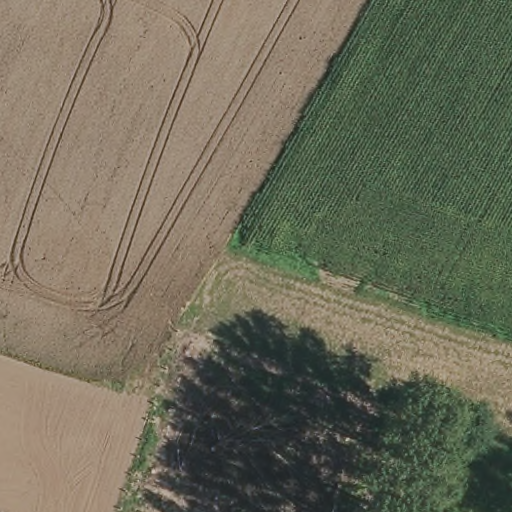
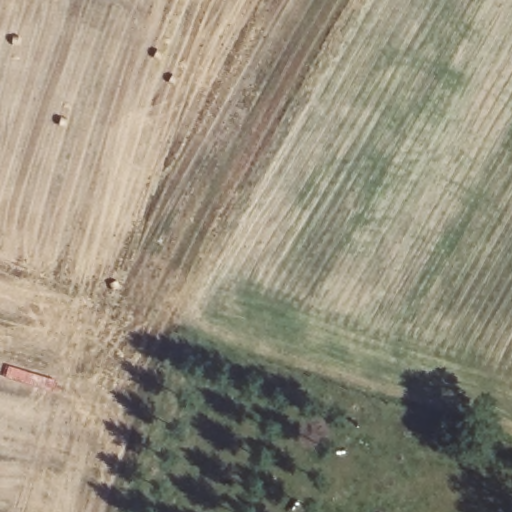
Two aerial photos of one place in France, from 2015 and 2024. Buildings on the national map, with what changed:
[]

